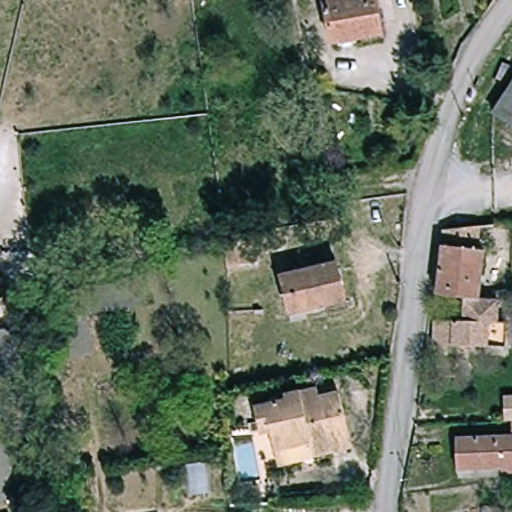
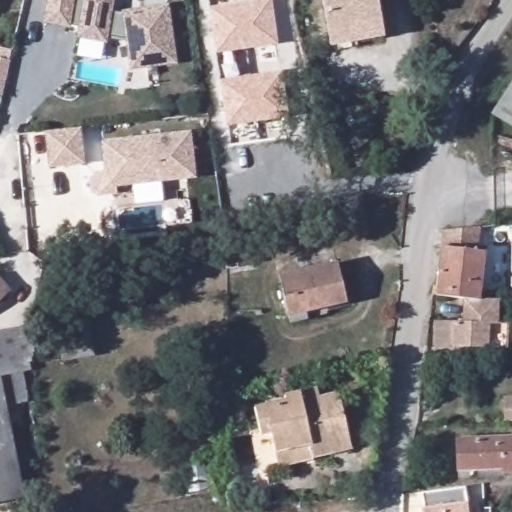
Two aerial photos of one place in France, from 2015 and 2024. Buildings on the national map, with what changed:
new [(109,39),(107,44),(76,38),(78,27),(71,25),(70,28),(42,23),(47,0),(115,0),(112,13),(121,14),(121,11),(168,3),(178,63),(130,71),(125,41),(109,39)]
new [(216,54),(210,7),(260,0),(271,0),(277,45),(216,54)]
unchanged [(385,37),(336,45),(327,0),(378,0),(385,37)]
new [(10,53),(1,94),(0,94),(0,50),(10,53)]
new [(226,126),(220,80),(282,71),(289,116),(226,126)]
unchanged [(512,89),(512,127),(495,116),(512,89)]
new [(79,127),(81,162),(47,165),(45,131),(79,127)]
new [(103,178),(99,140),(187,131),(192,176),(110,186),(104,186),(103,178)]
unchanged [(277,228),(281,248),(252,254),(255,263),(225,269),(224,239),(277,228)]
unchanged [(505,331),(505,356),(432,355),(433,330),(462,330),(463,307),(432,303),(436,303),(442,240),(477,239),(475,260),(481,261),(477,303),(476,308),(496,309),(495,331),(505,331)]
unchanged [(335,266),(343,303),(287,316),(279,280),(335,266)]
unchanged [(147,306),(90,318),(97,355),(61,359),(55,297),(141,279),(147,306)]
unchanged [(11,294),(0,305),(0,282),(11,294)]
unchanged [(39,362),(38,362),(31,363),(0,368),(0,338),(38,331),(39,362)]
unchanged [(261,441),(254,414),(286,406),(285,402),(316,394),(318,403),(338,399),(351,453),(313,462),(310,449),(276,457),(271,438),(261,441)]
unchanged [(505,404),(512,404),(512,428),(506,428),(505,404)]
unchanged [(0,493),(0,436),(10,491),(0,493)]
unchanged [(501,474),(457,475),(456,444),(512,443),(512,477),(501,477),(501,474)]
new [(464,486),(466,500),(468,512),(421,512),(420,507),(425,506),(422,493),(464,486)]

